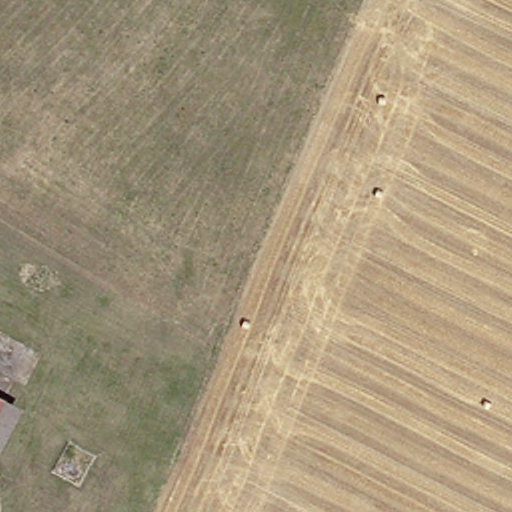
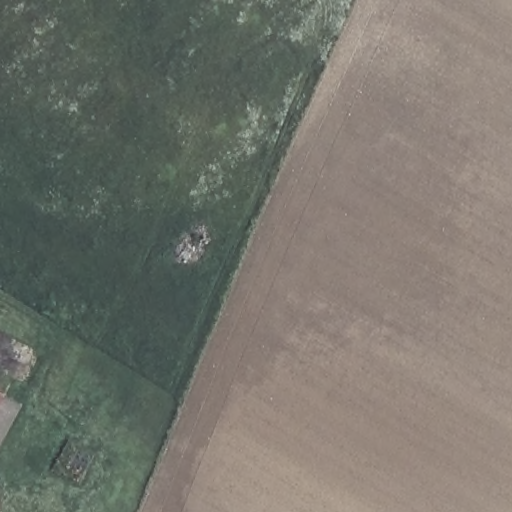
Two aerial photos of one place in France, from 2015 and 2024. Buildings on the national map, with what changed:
unchanged [(0,417),(0,401),(8,405),(0,417)]

